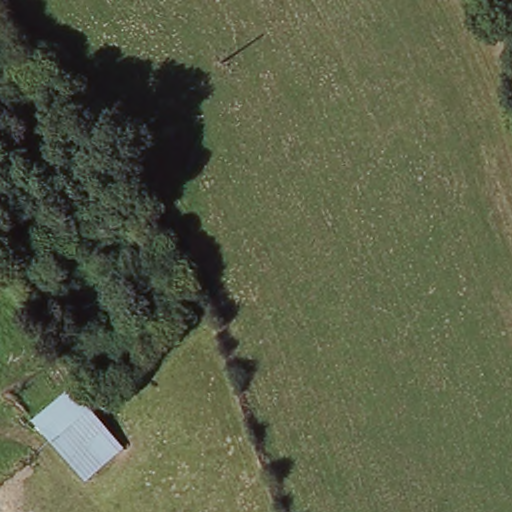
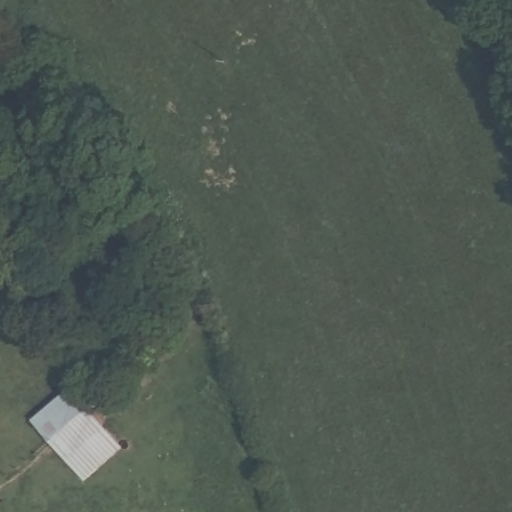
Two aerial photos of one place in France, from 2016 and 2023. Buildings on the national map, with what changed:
unchanged [(72,388),(122,450),(84,484),(31,423),(72,388)]

